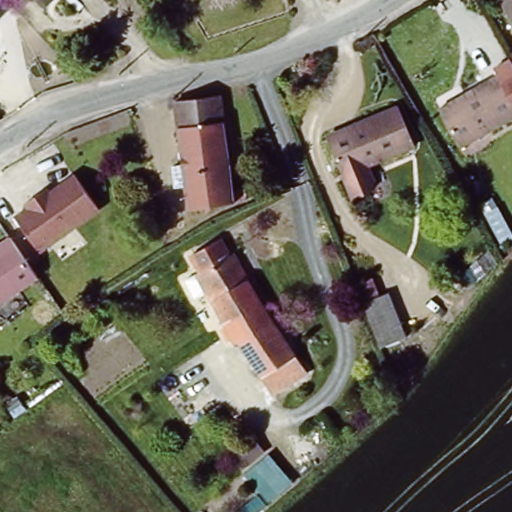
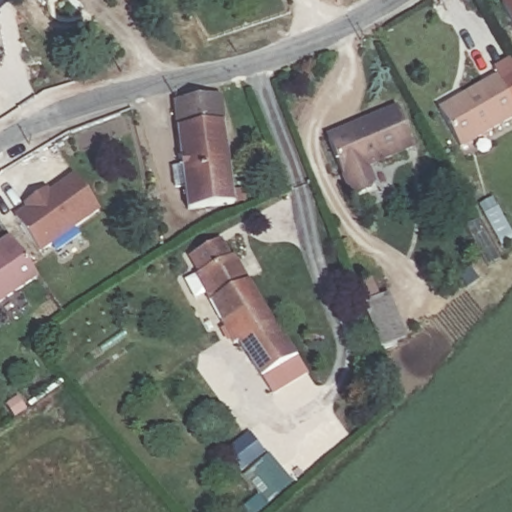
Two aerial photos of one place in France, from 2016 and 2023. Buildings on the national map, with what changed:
unchanged [(47,7),(40,0),(54,0),(47,7)]
unchanged [(512,1),(512,25),(502,6),(512,1)]
unchanged [(461,144),(440,107),(497,75),(512,102),(512,116),(461,144)]
unchanged [(242,196),(232,197),(186,203),(183,178),(171,179),(170,162),(181,161),(177,122),(175,105),(221,100),(222,117),(230,184),(240,183),(242,196)]
unchanged [(412,148),(372,164),(377,178),(372,192),(352,198),(331,138),(329,132),(353,123),(396,107),(412,148)]
unchanged [(100,208),(39,250),(14,212),(25,205),(23,201),(47,184),(49,187),(74,170),(100,208)]
unchanged [(38,275),(0,302),(0,242),(10,235),(38,275)]
unchanged [(268,392),(237,340),(234,343),(193,273),(198,270),(190,256),(198,252),(222,238),(231,253),(300,371),(268,392)]
unchanged [(364,302),(389,292),(406,336),(380,346),(364,302)]
unchanged [(17,423),(8,410),(18,403),(28,415),(17,423)]
unchanged [(244,422),(294,476),(277,491),(264,474),(258,480),(224,438),(244,422)]

